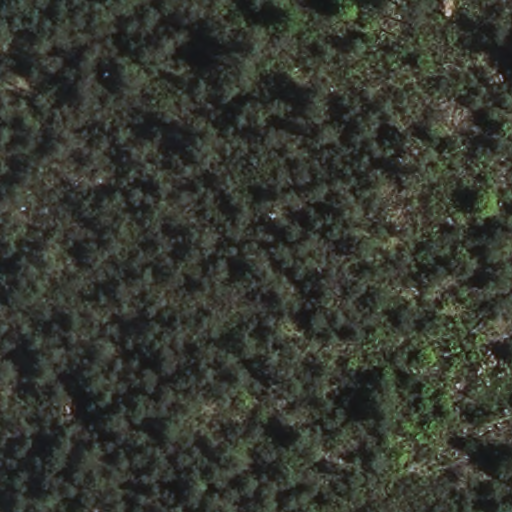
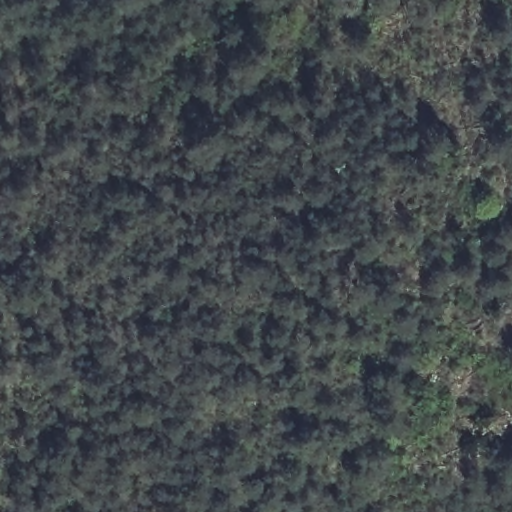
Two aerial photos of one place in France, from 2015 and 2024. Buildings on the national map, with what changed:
[]

